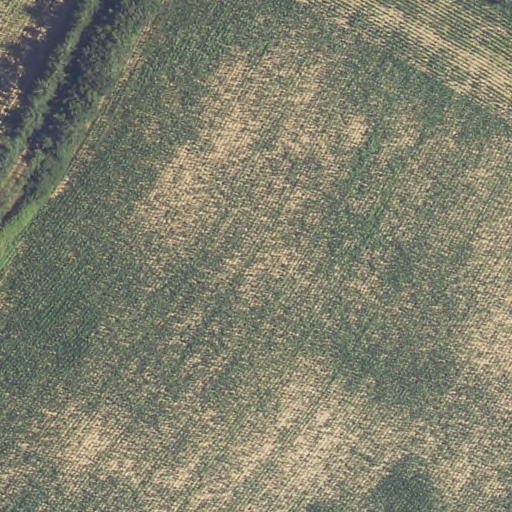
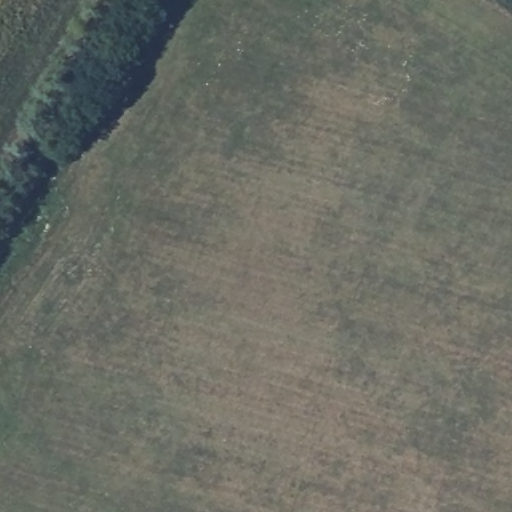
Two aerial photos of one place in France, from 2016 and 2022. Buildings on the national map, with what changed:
[]

